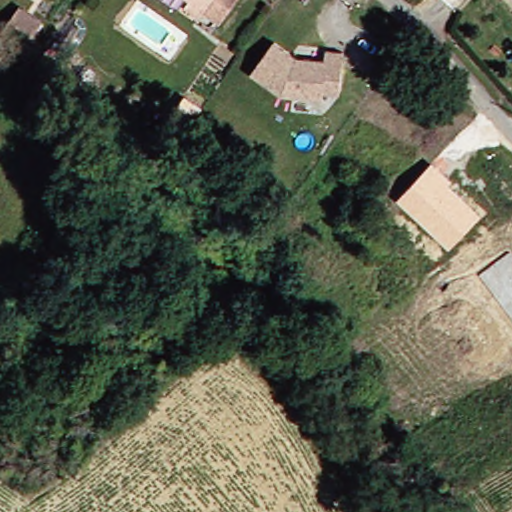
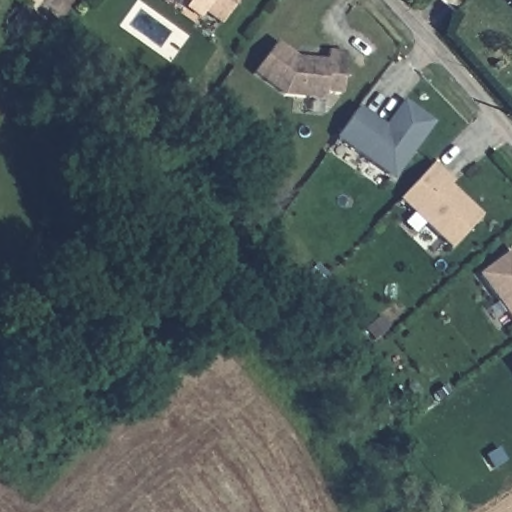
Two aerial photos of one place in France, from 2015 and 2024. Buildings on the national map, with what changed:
unchanged [(184,7),(189,2),(186,0),(235,0),(216,23),(201,12),(200,11),(196,17),(184,7)]
unchanged [(320,55),(337,57),(333,99),(317,97),(316,104),(275,100),(245,78),(268,46),(290,62),(291,62),(298,63),(319,65),(320,55)]
new [(372,124),(381,130),(399,105),(428,126),(389,180),(333,140),(354,111),(372,124)]
unchanged [(432,163),(452,181),(449,185),(481,218),(447,250),(396,201),(432,163)]
unchanged [(512,323),(477,275),(511,250),(512,252),(512,323)]

